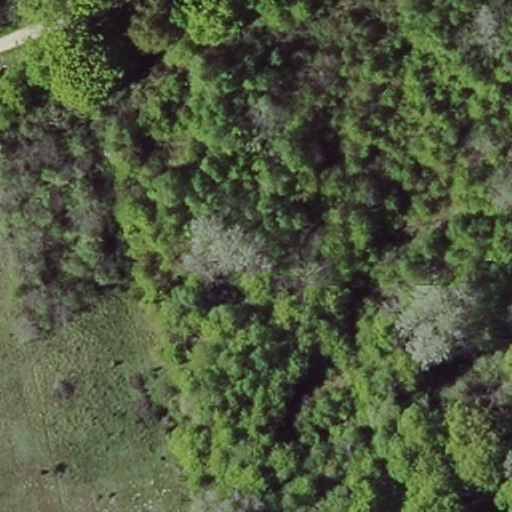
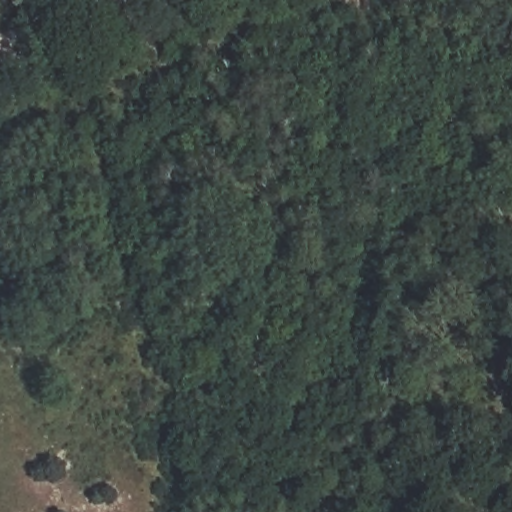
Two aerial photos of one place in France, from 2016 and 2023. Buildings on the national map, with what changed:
[]

